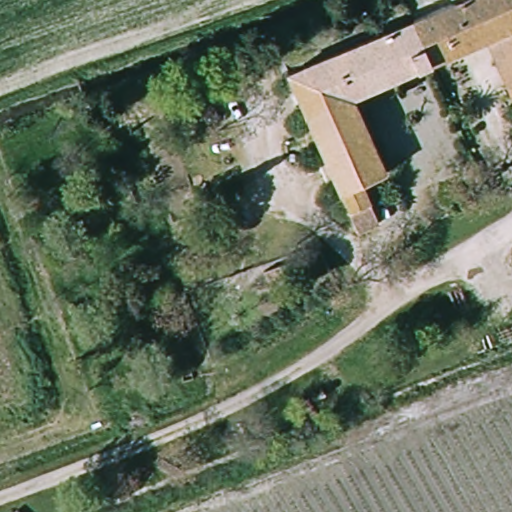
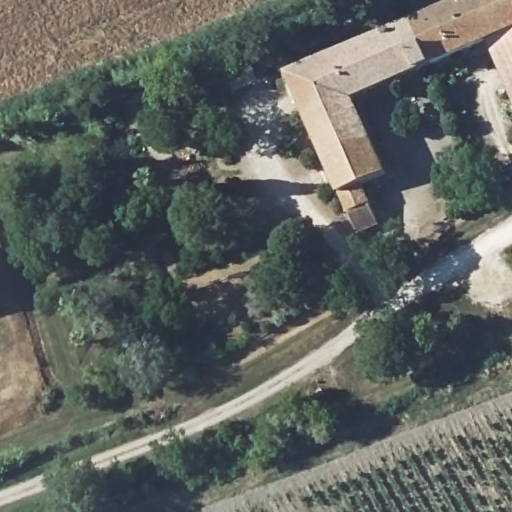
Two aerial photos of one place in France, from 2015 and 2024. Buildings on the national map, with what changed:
unchanged [(512,114),(483,47),(428,71),(410,28),(476,0),(512,0),(512,114)]
unchanged [(351,104),(384,180),(359,191),(378,236),(358,245),(286,80),(410,28),(428,71),(351,104)]
unchanged [(235,195),(240,206),(192,224),(188,213),(235,195)]

